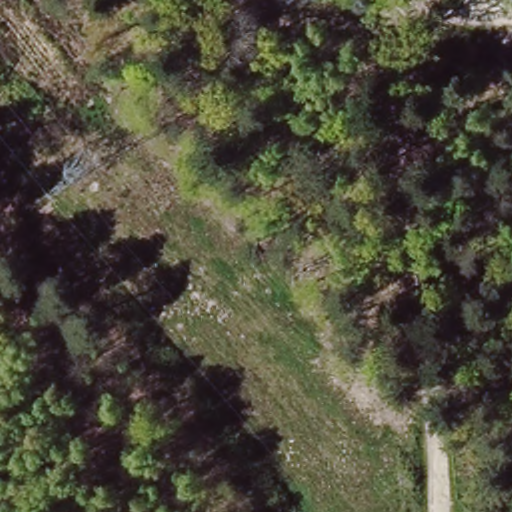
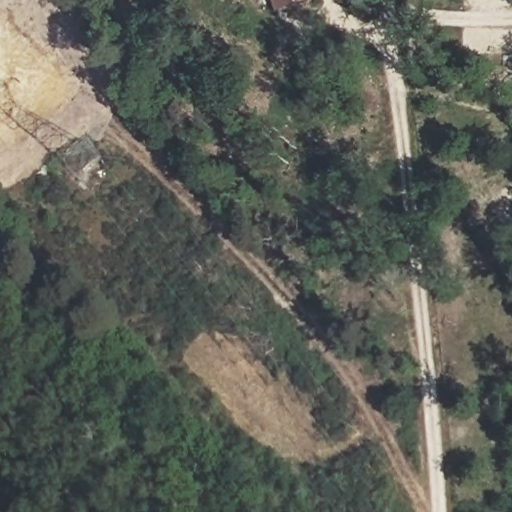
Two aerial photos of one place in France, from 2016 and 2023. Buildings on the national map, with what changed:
unchanged [(310,3),(280,16),(273,0),(308,0),(310,3)]

